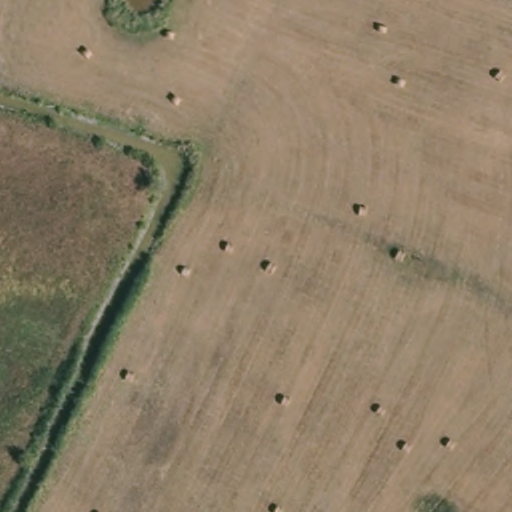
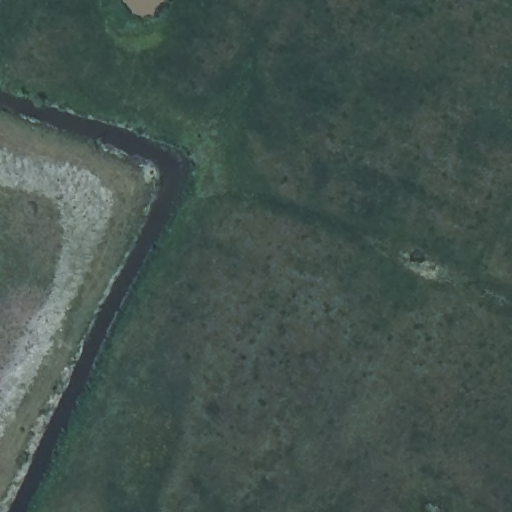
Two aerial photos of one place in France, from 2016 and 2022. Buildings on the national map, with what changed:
[]

